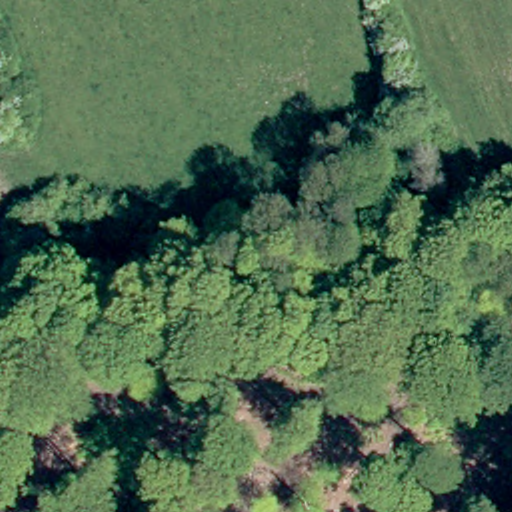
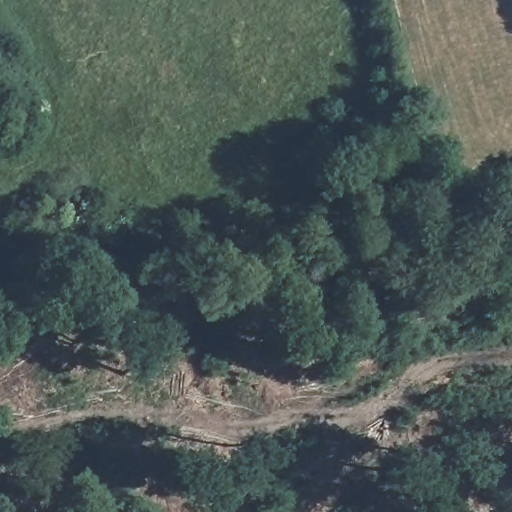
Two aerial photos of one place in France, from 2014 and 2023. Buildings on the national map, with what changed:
[]

